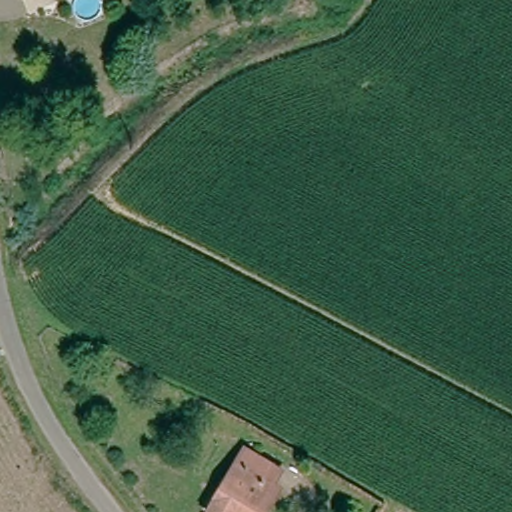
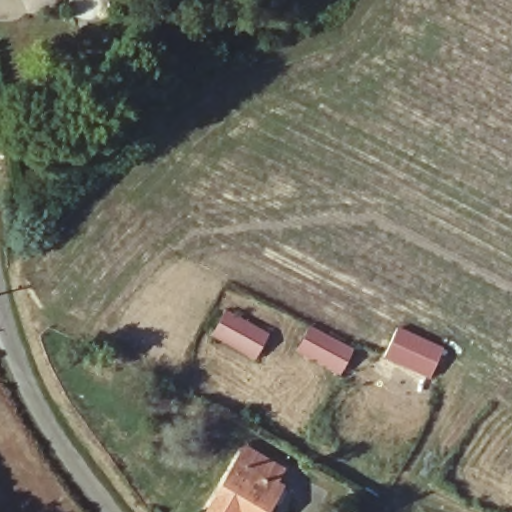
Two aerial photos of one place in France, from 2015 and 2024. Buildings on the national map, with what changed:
new [(212,335),(227,309),(271,334),(256,360),(212,335)]
new [(341,375),(296,352),(310,324),(355,349),(348,362),(341,375)]
unchanged [(241,451),(279,472),(287,476),(267,512),(207,512),(241,451)]

